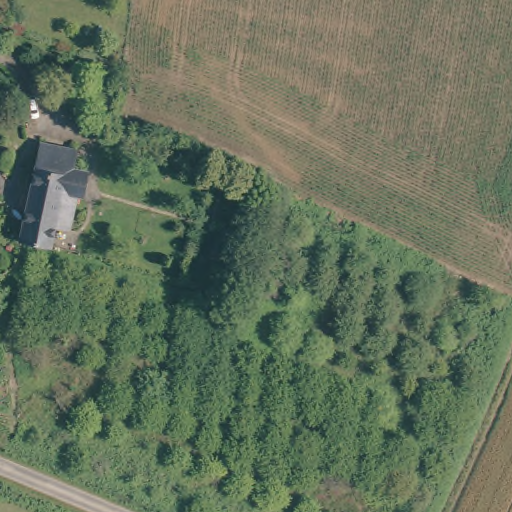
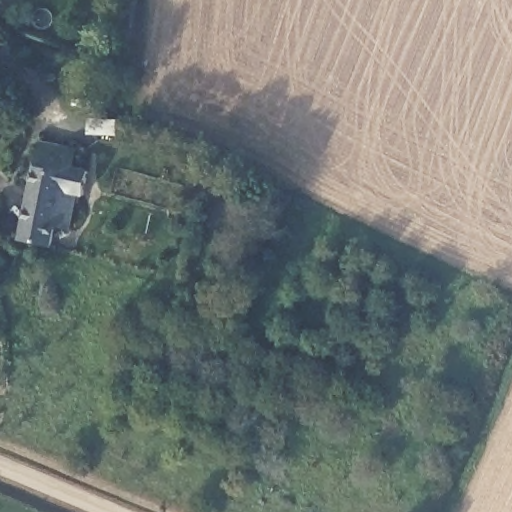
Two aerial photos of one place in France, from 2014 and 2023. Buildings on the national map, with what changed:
unchanged [(45,139),(73,144),(58,227),(54,248),(24,240),(45,139)]
unchanged [(81,146),(79,166),(93,169),(89,194),(81,192),(80,200),(75,230),(58,227),(73,144),(81,146)]

